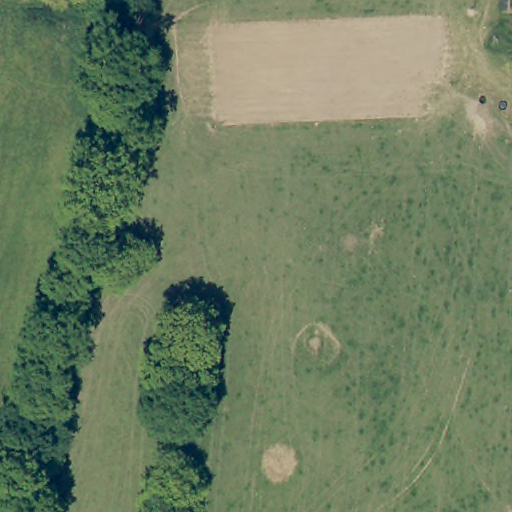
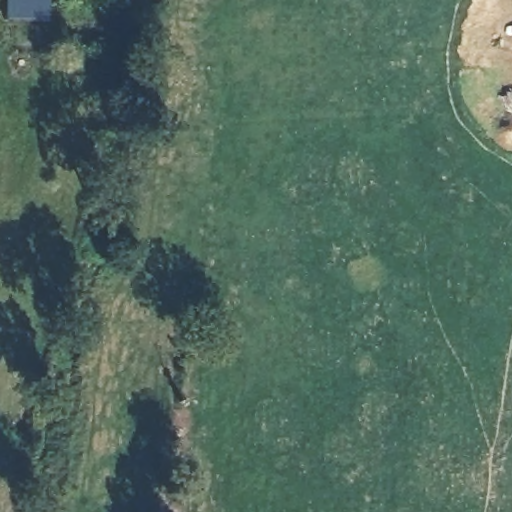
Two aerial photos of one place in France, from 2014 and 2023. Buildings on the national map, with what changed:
new [(46,21),(5,19),(6,0),(46,0),(46,21)]

